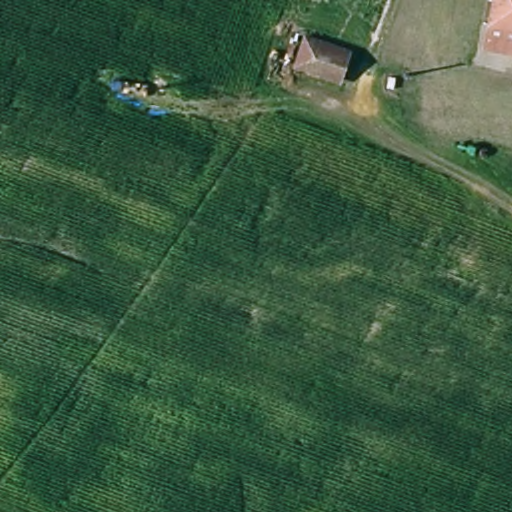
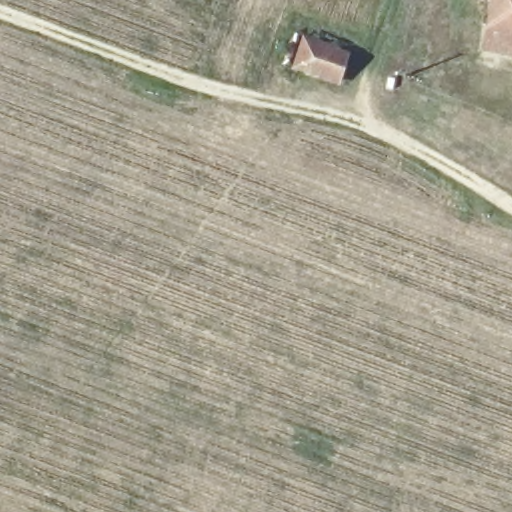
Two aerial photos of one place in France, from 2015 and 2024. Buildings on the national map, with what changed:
unchanged [(491,25),(499,0),(512,0),(512,55),(483,46),(491,25)]
unchanged [(349,47),(348,79),(297,75),(299,42),(349,47)]

